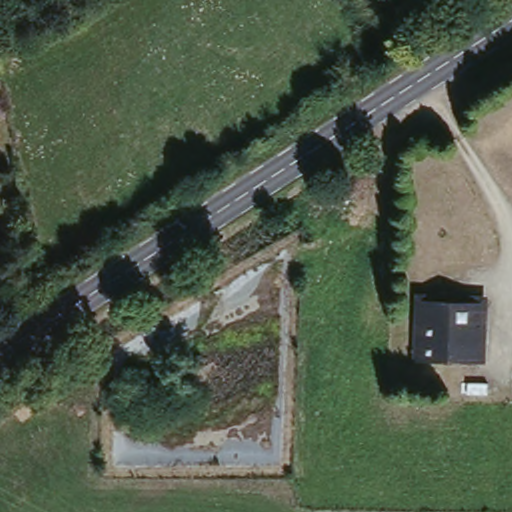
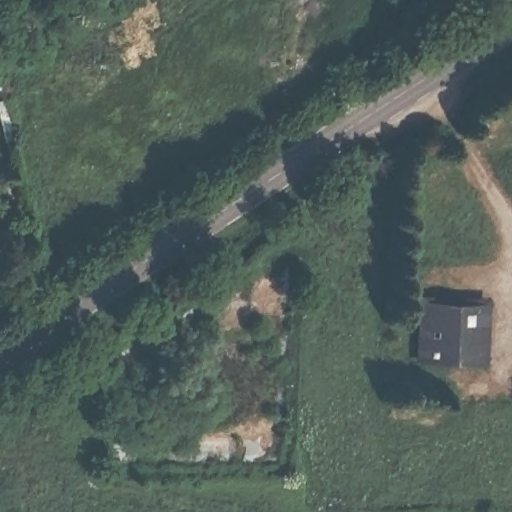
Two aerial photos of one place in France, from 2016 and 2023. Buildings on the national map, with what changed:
unchanged [(414,361),(417,295),(490,300),(487,364),(414,361)]

